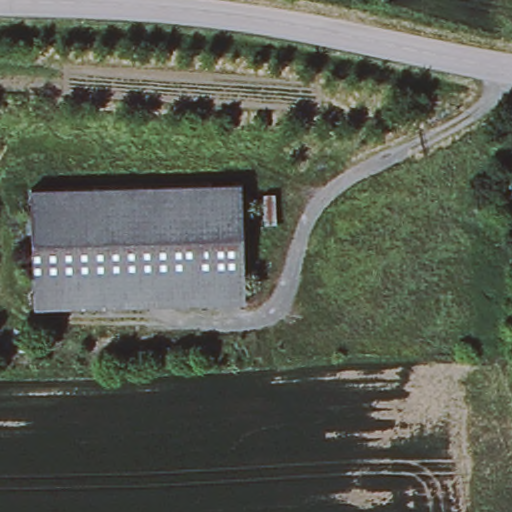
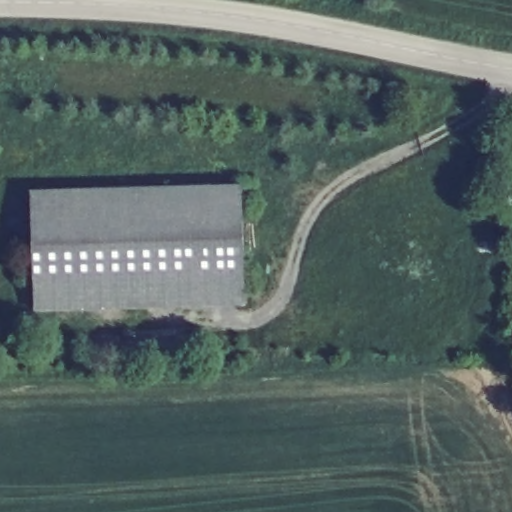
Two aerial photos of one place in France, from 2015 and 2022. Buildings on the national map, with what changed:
unchanged [(26,203),(26,198),(237,193),(237,207),(240,273),(240,294),(29,300),(28,272),(26,203)]

